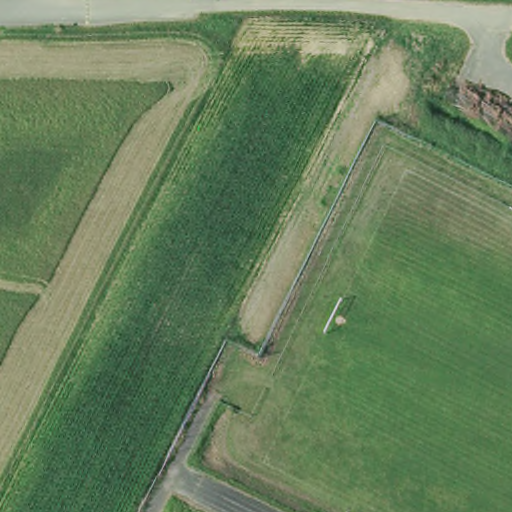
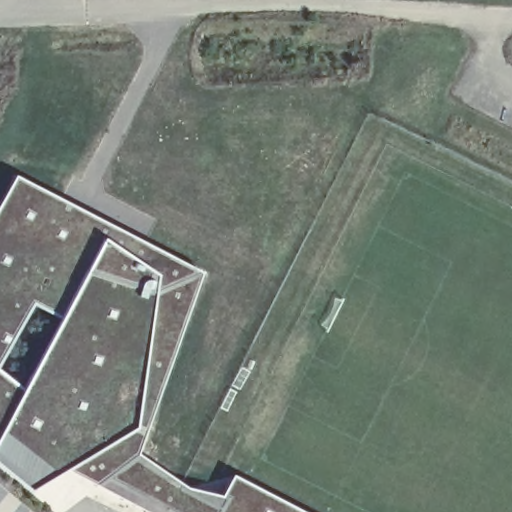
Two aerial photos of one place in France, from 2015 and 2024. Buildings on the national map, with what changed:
new [(65,469),(28,494),(0,471),(0,205),(18,173),(202,273),(142,453),(187,488),(222,492),(235,473),(313,512),(150,512),(65,469)]

